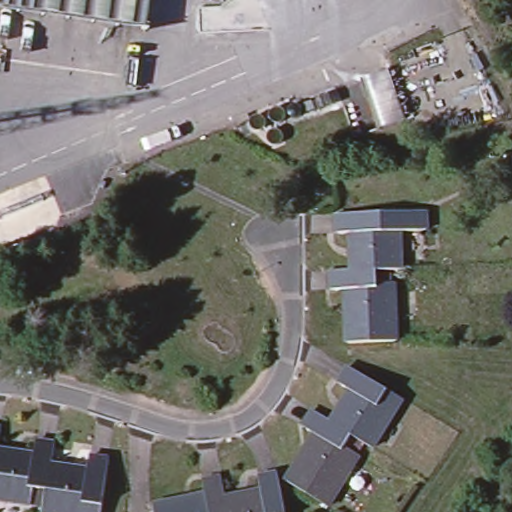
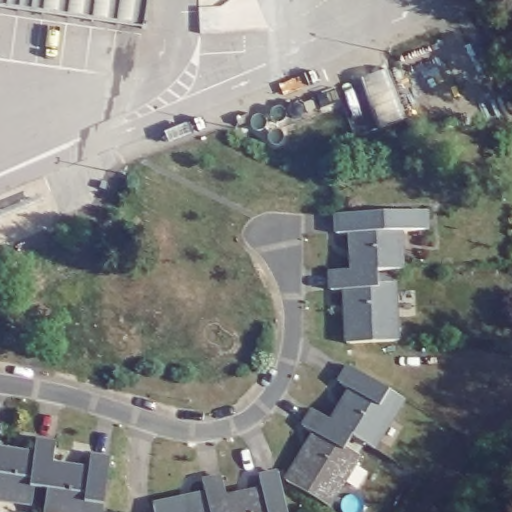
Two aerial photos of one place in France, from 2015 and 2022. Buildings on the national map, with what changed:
unchanged [(146,25),(149,26),(148,31),(0,10),(0,0),(149,0),(146,25)]
unchanged [(386,69),(404,120),(376,130),(358,80),(386,69)]
unchanged [(334,291),(333,272),(355,271),(353,234),(340,234),(338,216),(430,211),(431,228),(401,230),(403,266),(378,267),(379,282),(395,282),(398,341),(350,343),(347,291),(334,291)]
unchanged [(340,385),(350,367),(405,400),(376,447),(354,435),(346,447),(363,457),(332,508),(288,482),(317,433),(303,425),(312,410),(332,421),(350,391),(340,385)]
unchanged [(4,428),(0,452),(36,457),(38,442),(55,445),(52,467),(91,472),(94,458),(110,461),(103,512),(50,512),(43,511),(46,496),(30,493),(28,503),(0,499),(0,479),(1,472),(0,472),(0,428),(4,428)]
unchanged [(204,480),(224,477),(227,500),(265,494),(262,477),(279,475),(285,512),(160,512),(158,500),(206,492),(204,480)]

